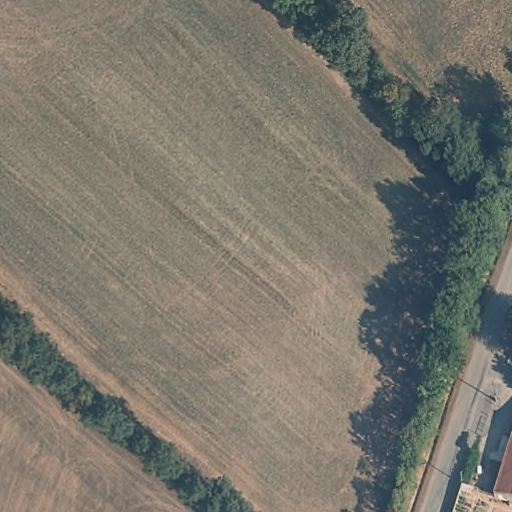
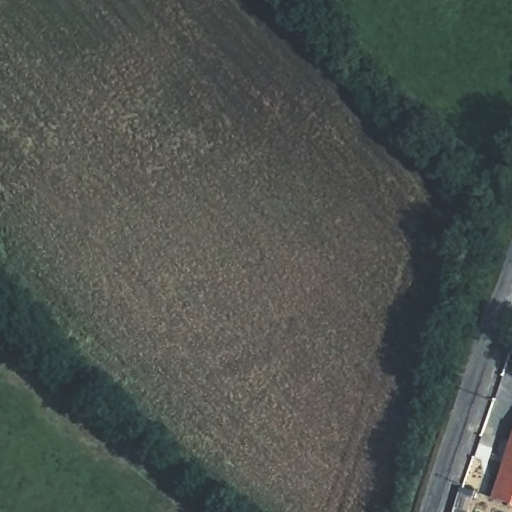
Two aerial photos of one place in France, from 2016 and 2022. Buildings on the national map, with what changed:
unchanged [(503,491),(512,463),(512,494),(503,491)]

